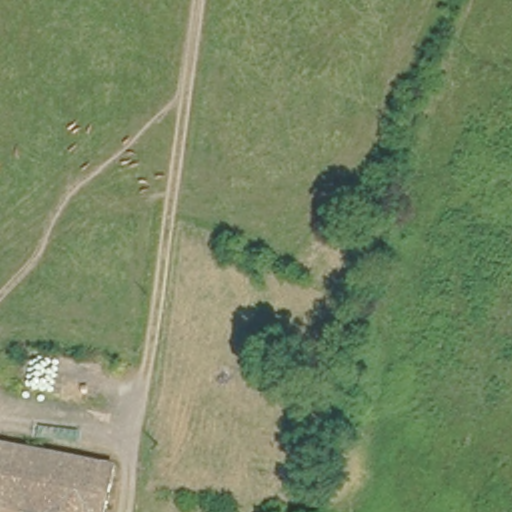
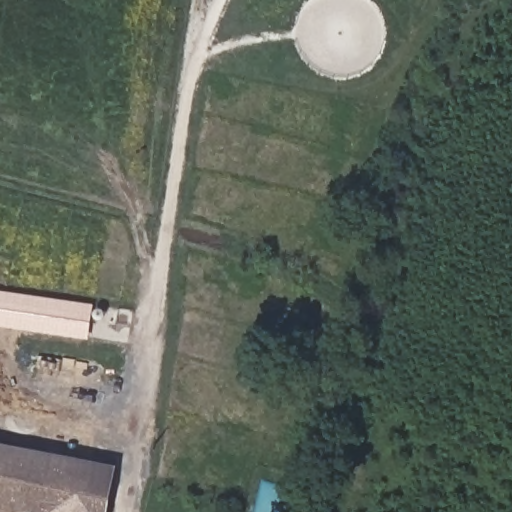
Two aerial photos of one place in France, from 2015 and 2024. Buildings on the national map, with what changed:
new [(0,326),(0,293),(92,306),(87,339),(0,326)]
unchanged [(92,455),(115,466),(106,512),(0,512),(0,436),(92,455)]
unchanged [(301,504),(328,512),(299,512),(301,504)]

